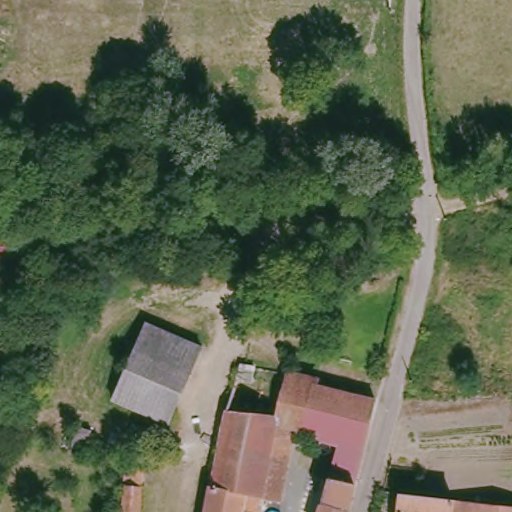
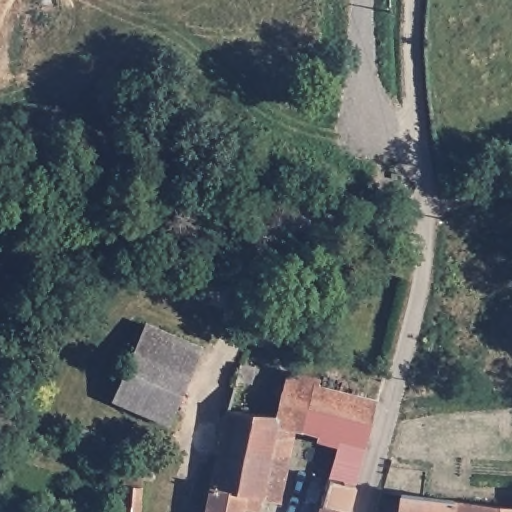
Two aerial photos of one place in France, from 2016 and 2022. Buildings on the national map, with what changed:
unchanged [(28,245),(27,264),(0,263),(0,233),(29,234),(29,237),(28,245)]
unchanged [(114,391),(144,323),(198,345),(183,381),(170,416),(167,414),(114,391)]
unchanged [(277,417),(287,374),(315,381),(315,387),(306,430),(295,428),(290,450),(281,494),(265,496),(262,510),(250,508),(252,495),(248,495),(244,512),(209,512),(229,410),(277,417)]
unchanged [(367,440),(342,435),(306,430),(315,387),(377,402),(367,440)]
unchanged [(87,433),(81,444),(60,434),(65,422),(87,433)]
unchanged [(360,470),(357,480),(331,474),(342,435),(367,440),(360,470)]
unchanged [(127,512),(131,465),(145,468),(142,512),(127,512)]
unchanged [(321,512),(331,474),(357,480),(349,512),(321,512)]
unchanged [(420,492),(512,503),(512,512),(399,512),(402,489),(420,492)]

